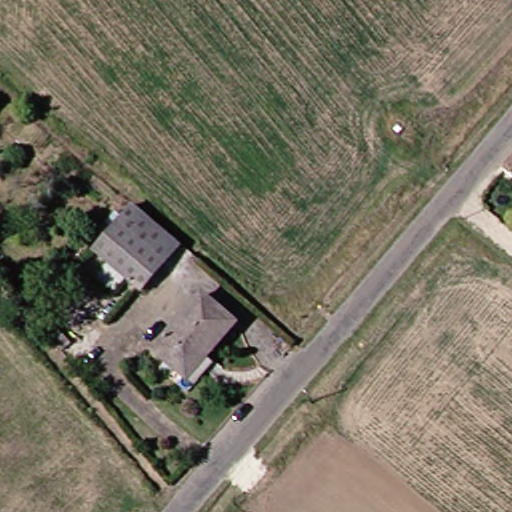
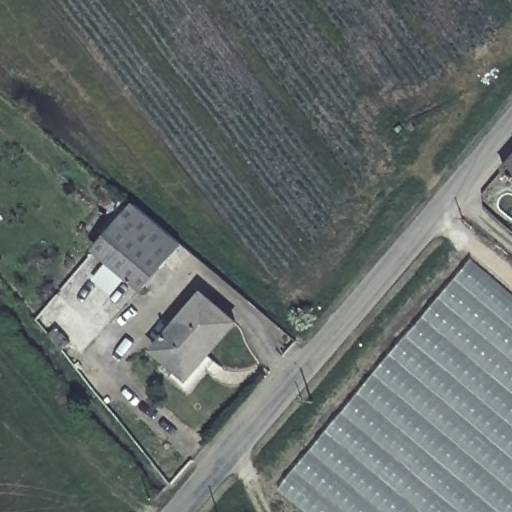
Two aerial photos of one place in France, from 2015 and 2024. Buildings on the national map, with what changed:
unchanged [(509,166),(512,163),(512,169),(509,166)]
unchanged [(142,287),(99,249),(136,205),(182,242),(142,287)]
new [(473,260),(512,294),(512,512),(309,512),(281,488),(473,260)]
unchanged [(128,285),(113,298),(94,282),(108,268),(128,285)]
unchanged [(188,392),(169,374),(178,365),(156,346),(204,291),(235,319),(209,352),(218,360),(188,392)]
unchanged [(68,355),(51,338),(58,330),(75,347),(68,355)]

